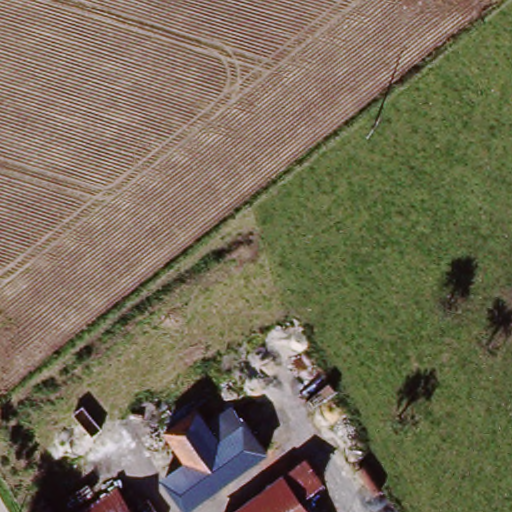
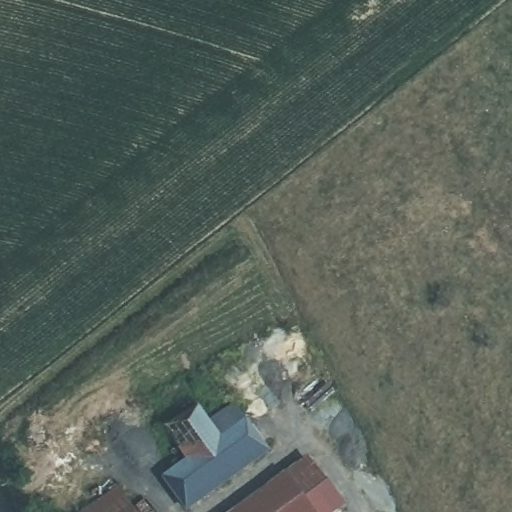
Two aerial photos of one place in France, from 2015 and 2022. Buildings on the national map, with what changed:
unchanged [(262,445),(190,512),(170,490),(196,466),(184,452),(178,445),(204,422),(212,431),(222,442),(242,422),(262,445)]
unchanged [(302,448),(342,497),(326,512),(223,512),(302,448)]
unchanged [(115,494),(130,512),(94,512),(115,494)]

